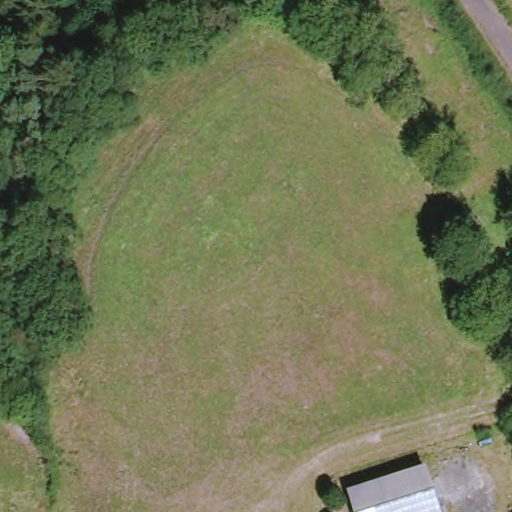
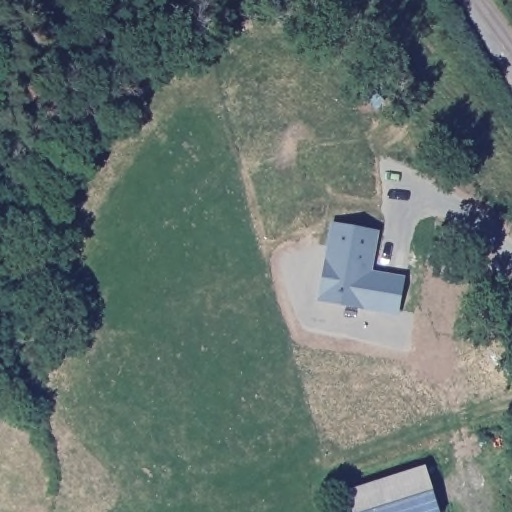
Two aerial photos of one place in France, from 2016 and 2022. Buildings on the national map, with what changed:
new [(379,231),(372,272),(405,277),(398,317),(318,300),(332,223),(379,231)]
unchanged [(427,467),(439,512),(352,512),(345,488),(427,467)]

